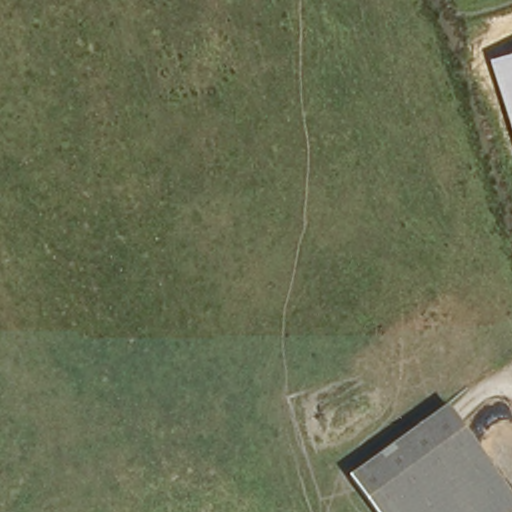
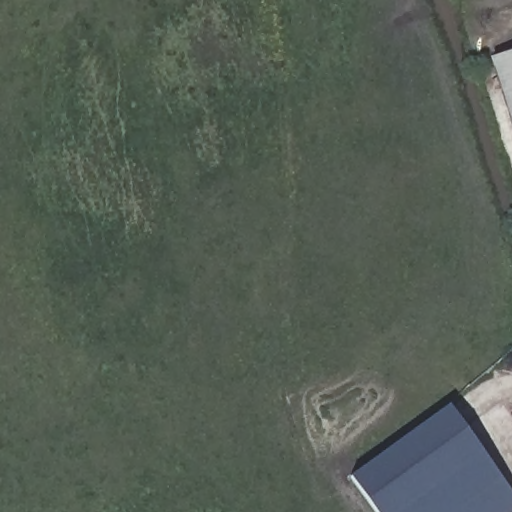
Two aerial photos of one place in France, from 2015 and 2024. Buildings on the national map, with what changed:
unchanged [(512,126),(491,59),(512,52),(512,126)]
unchanged [(369,512),(350,486),(446,417),(512,510),(512,511),(511,512),(369,512)]

